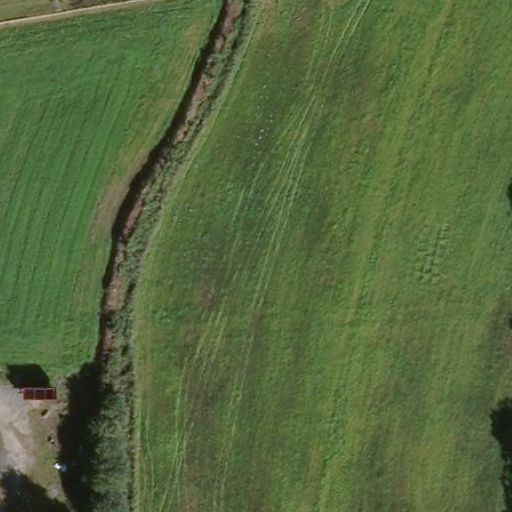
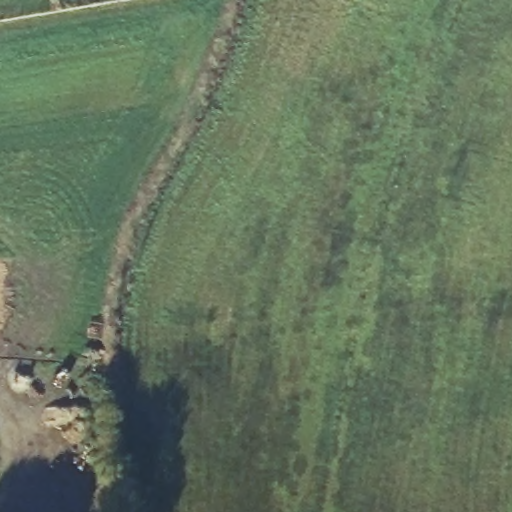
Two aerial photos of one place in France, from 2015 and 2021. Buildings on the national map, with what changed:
[]

